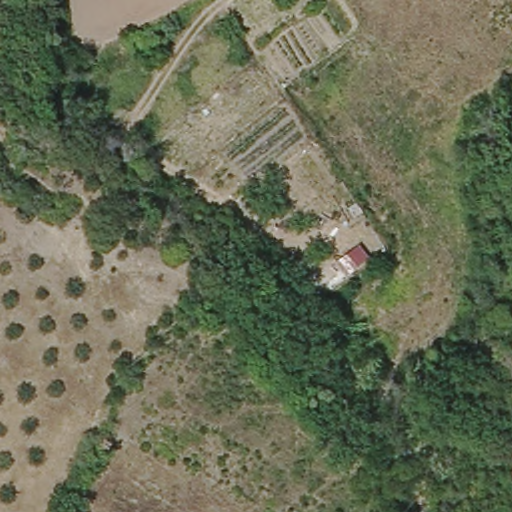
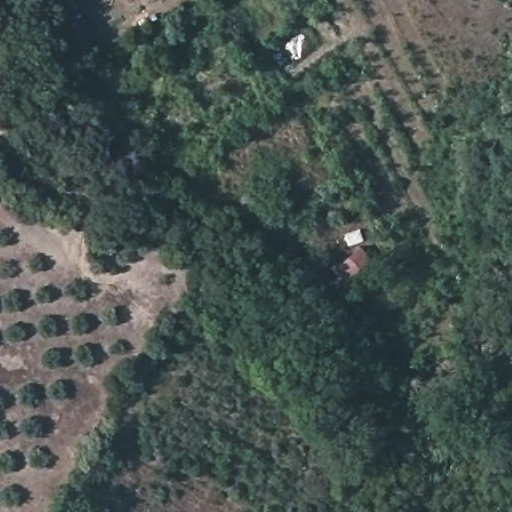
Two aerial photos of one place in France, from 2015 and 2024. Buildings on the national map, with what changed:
unchanged [(166,36),(138,50),(131,35),(160,25),(166,36)]

